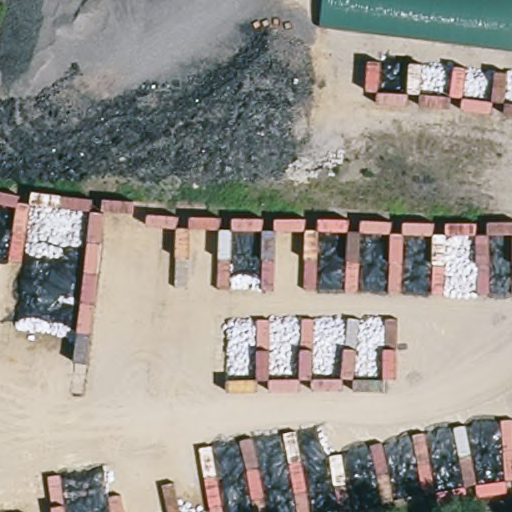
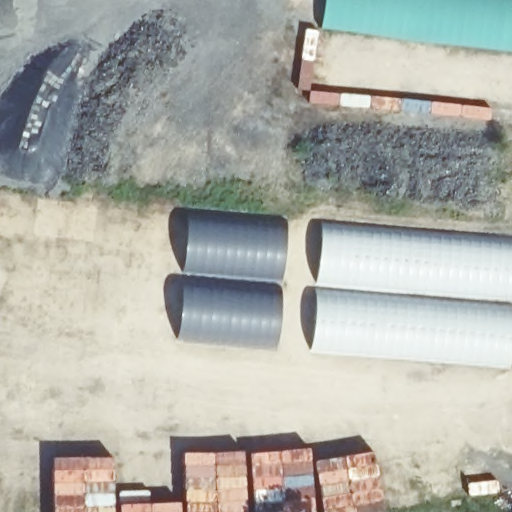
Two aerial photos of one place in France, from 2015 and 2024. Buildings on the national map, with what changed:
unchanged [(512,51),(321,27),(325,0),(512,0),(512,51)]
new [(189,210),(287,218),(282,282),(184,273),(189,210)]
new [(512,239),(512,352),(511,368),(311,353),(322,222),(512,239)]
new [(174,342),(181,281),(280,288),(274,350),(174,342)]

